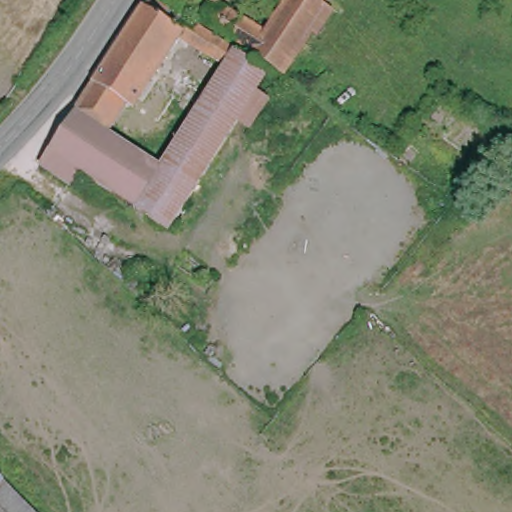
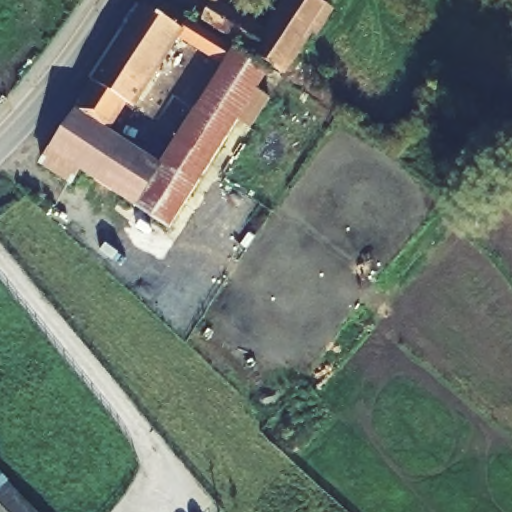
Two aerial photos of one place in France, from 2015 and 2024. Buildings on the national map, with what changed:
unchanged [(201,0),(216,0),(212,6),(201,0)]
unchanged [(256,58),(201,22),(212,6),(267,40),(294,0),(311,0),(325,10),(280,78),(254,60),(256,58)]
unchanged [(325,0),(332,0),(330,3),(325,0)]
unchanged [(167,234),(134,211),(135,210),(79,174),(70,188),(42,169),(75,115),(106,135),(160,170),(224,70),(179,40),(132,110),(125,106),(95,85),(150,1),(200,32),(262,73),(267,76),(255,95),(268,104),(249,133),(237,125),(167,234)]
unchanged [(95,85),(125,106),(106,135),(75,115),(95,85)]
unchanged [(0,485),(0,477),(5,481),(0,485)]
unchanged [(33,512),(0,512),(0,485),(5,481),(34,511),(33,512)]
unchanged [(34,511),(34,512),(33,512),(34,511)]

